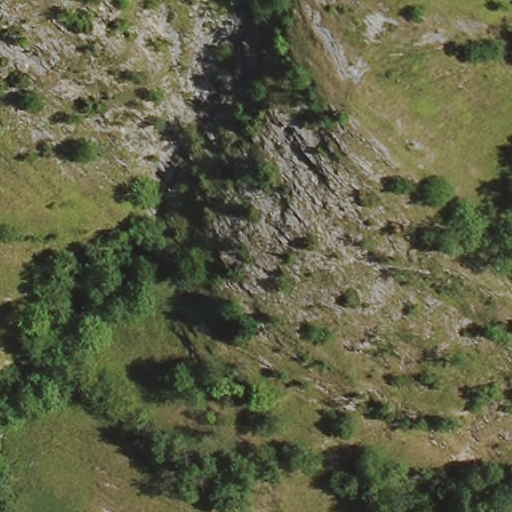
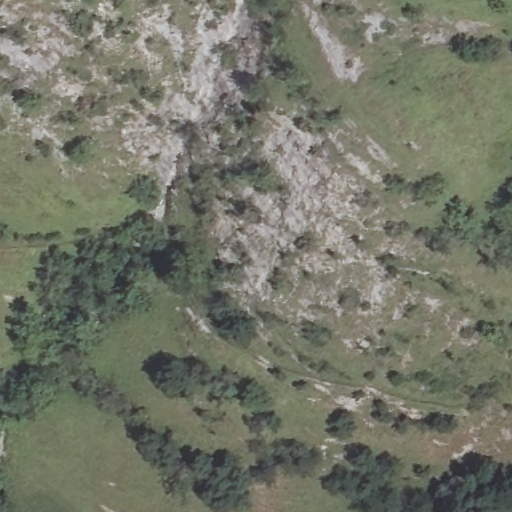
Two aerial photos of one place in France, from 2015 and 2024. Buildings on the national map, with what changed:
[]

